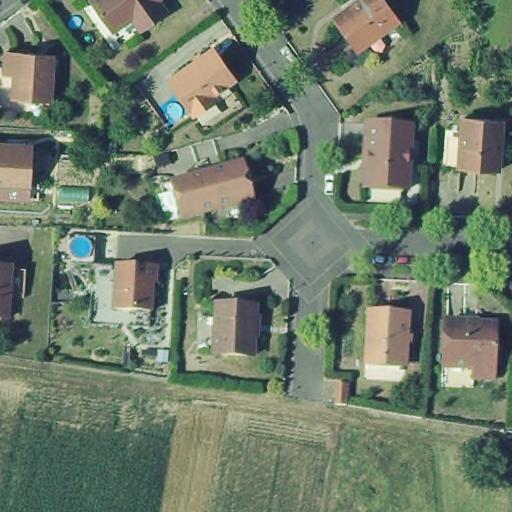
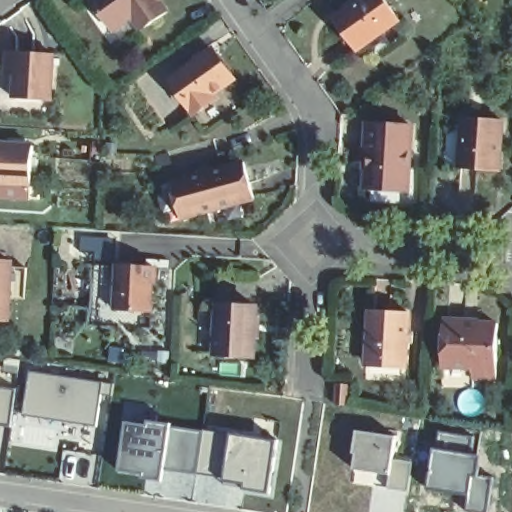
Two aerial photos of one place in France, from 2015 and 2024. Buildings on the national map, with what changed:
unchanged [(86,0),(154,0),(153,0),(162,13),(138,29),(115,44),(106,31),(86,0)]
unchanged [(344,9),(356,1),(356,0),(378,0),(393,20),(351,50),(328,18),(343,7),(344,9)]
unchanged [(53,56),(48,101),(12,98),(14,75),(3,74),(5,51),(53,56)]
unchanged [(164,80),(204,52),(226,82),(207,95),(209,99),(189,114),(164,80)]
unchanged [(463,123),(502,126),(499,175),(459,172),(463,123)]
unchanged [(361,168),(366,165),(359,158),(361,124),(406,125),(403,189),(360,188),(361,168)]
unchanged [(27,146),(25,184),(0,183),(0,145),(27,146)]
unchanged [(167,182),(239,163),(248,198),(176,218),(167,182)]
unchanged [(6,263),(5,268),(21,269),(19,299),(3,298),(2,319),(0,319),(0,263),(6,263)]
unchanged [(107,308),(110,265),(148,267),(144,311),(107,308)]
unchanged [(251,312),(248,361),(209,359),(212,310),(251,312)]
unchanged [(366,365),(369,315),(408,317),(406,367),(366,365)]
unchanged [(439,321),(494,324),(492,379),(469,378),(470,369),(438,367),(439,321)]
new [(99,382),(95,424),(23,414),(28,372),(99,382)]
unchanged [(349,384),(348,405),(336,404),(336,383),(349,384)]
new [(9,426),(0,425),(0,388),(15,390),(9,426)]
new [(196,474),(164,469),(162,481),(143,479),(144,472),(120,469),(128,424),(149,427),(150,422),(171,426),(201,431),(196,474)]
new [(390,435),(388,459),(408,461),(404,493),(384,490),(386,475),(348,469),(354,431),(390,435)]
new [(273,443),(266,491),(224,485),(233,437),(273,443)]
new [(472,453),(469,477),(489,480),(486,511),(465,508),(467,494),(429,488),(436,449),(472,453)]

